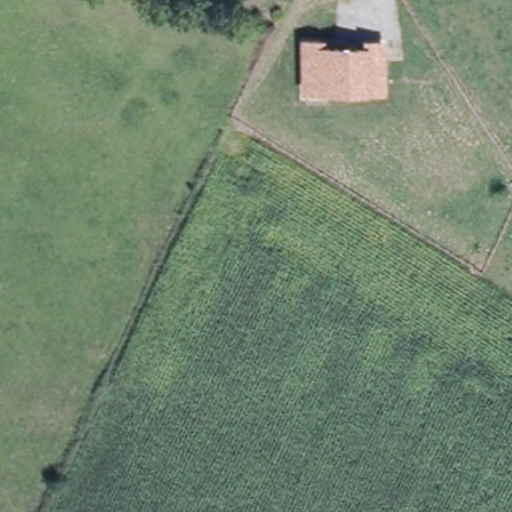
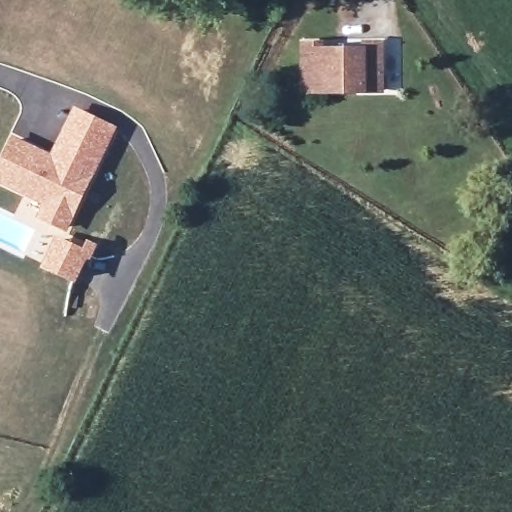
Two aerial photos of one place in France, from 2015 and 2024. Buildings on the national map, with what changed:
unchanged [(367,91),(307,90),(307,43),(319,43),(319,50),(366,50),(366,44),(384,44),(384,76),(384,91),(367,91)]
new [(75,106),(119,126),(69,232),(37,216),(42,204),(0,184),(0,160),(12,135),(52,154),(75,106)]
new [(86,247),(89,238),(100,243),(93,260),(90,258),(80,282),(44,267),(57,234),(86,247)]

